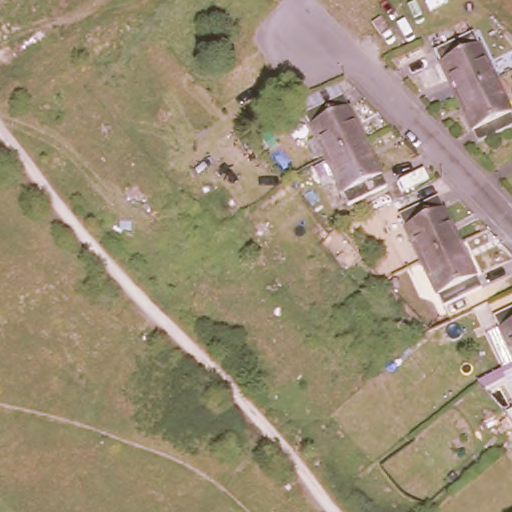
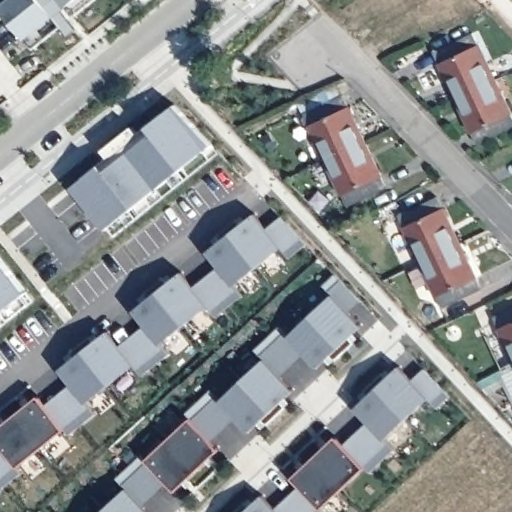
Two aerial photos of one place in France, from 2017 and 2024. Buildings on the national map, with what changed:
new [(8,0),(45,0),(50,5),(51,4),(55,9),(60,5),(80,30),(72,35),(64,25),(36,47),(2,5),(8,0)]
new [(65,11),(60,5),(55,9),(51,4),(50,5),(45,0),(64,0),(70,8),(65,11)]
new [(95,0),(76,15),(64,0),(95,0)]
unchanged [(432,41),(467,25),(473,36),(488,70),(452,87),(437,54),(432,41)]
unchanged [(469,122),(452,87),(488,70),(504,106),(510,118),(475,135),(469,122)]
unchanged [(314,108),(349,91),(355,103),(370,136),(335,153),(320,120),(314,108)]
new [(104,161),(108,167),(155,130),(150,124),(178,102),(212,144),(109,226),(75,184),(104,161)]
new [(111,154),(105,147),(136,123),(142,130),(150,123),(155,130),(108,167),(102,160),(111,154)]
unchanged [(352,189),(335,153),(370,136),(387,172),(392,185),(357,201),(352,189)]
unchanged [(427,256),(411,223),(405,211),(443,194),(448,205),(464,239),(427,256)]
new [(257,210),(284,244),(235,283),(208,250),(257,210)]
new [(283,245),(284,244),(269,225),(282,213),(302,235),(309,241),(292,255),(285,248),(283,245)]
new [(242,222),(239,217),(244,214),(247,217),(242,222)]
new [(214,237),(219,234),(222,237),(217,242),(214,237)]
unchanged [(442,291),(427,256),(464,239),(479,273),(485,285),(448,302),(442,291)]
new [(0,312),(0,250),(30,288),(0,312)]
new [(210,303),(210,302),(195,283),(219,263),(235,283),(236,281),(239,285),(245,292),(218,313),(212,306),(210,303)]
new [(184,268),(210,302),(161,341),(134,308),(184,268)]
new [(352,310),(335,291),(334,293),(331,290),(325,283),(337,271),(343,278),(363,300),(352,310)]
new [(169,280),(165,276),(170,272),(174,276),(169,280)]
new [(365,323),(319,366),(290,335),(335,291),(365,323)]
new [(144,300),(140,295),(146,292),(149,296),(144,300)]
unchanged [(502,325),(497,311),(512,304),(512,346),(502,325)]
new [(136,361),(137,361),(122,341),(145,322),(161,341),(163,340),(165,344),(171,350),(145,372),(139,365),(136,361)]
new [(290,335),(307,353),(284,374),(267,356),(265,357),(262,354),(256,347),(281,323),(287,330),(290,334),(290,335)]
new [(110,327),(137,361),(88,400),(61,366),(110,327)]
new [(95,338),(92,335),(97,330),(100,335),(95,338)]
new [(355,331),(359,335),(354,340),(350,336),(355,331)]
new [(70,358),(67,354),(72,350),(75,355),(70,358)]
new [(332,353),(335,357),(331,361),(327,357),(332,353)]
new [(296,387),(287,396),(250,430),(221,399),(267,356),(296,387)]
new [(355,406),(401,362),(430,394),(385,437),(355,406)]
new [(430,395),(430,394),(414,376),(425,365),(445,386),(452,393),(439,405),(432,398),(430,395)]
new [(384,372),(389,367),(392,371),(387,375),(384,372)]
new [(0,438),(0,424),(40,391),(66,423),(47,400),(72,380),(88,400),(90,398),(92,402),(98,410),(71,430),(67,425),(20,463),(24,468),(0,487),(0,439),(18,461),(0,438)]
new [(147,502),(130,484),(128,485),(125,482),(119,476),(144,452),(148,457),(192,416),(188,411),(212,388),(219,395),(195,417),(222,447),(177,488),(150,460),(170,481),(147,502)]
new [(361,393),(366,389),(370,392),(365,397),(361,393)]
new [(27,402),(23,398),(28,393),(32,399),(27,402)]
new [(195,417),(219,395),(222,398),(221,399),(238,417),(215,439),(195,417)]
new [(290,400),(285,404),(282,400),(287,396),(290,400)]
new [(0,420),(0,416),(3,413),(7,418),(2,422),(0,420)]
new [(264,417),(267,421),(262,425),(259,422),(264,417)]
new [(337,433),(365,462),(345,440),(357,430),(367,419),(385,437),(386,436),(389,439),(395,445),(383,457),(371,469),(367,465),(345,486),(315,455),(337,433)]
new [(320,441),(325,436),(330,441),(324,445),(320,441)]
new [(217,458),(212,463),(209,460),(214,455),(217,458)]
new [(277,504),(288,493),(300,483),(293,475),(315,455),(345,486),(323,506),(327,510),(324,512),(284,512),(277,504)]
new [(297,463),(302,458),(306,462),(302,467),(297,463)]
new [(190,476),(194,480),(189,485),(185,481),(190,476)]
new [(130,484),(156,512),(100,512),(130,484)]
new [(265,491),(284,512),(242,512),(265,491)]
new [(247,500),(252,496),(255,500),(250,505),(247,500)]

